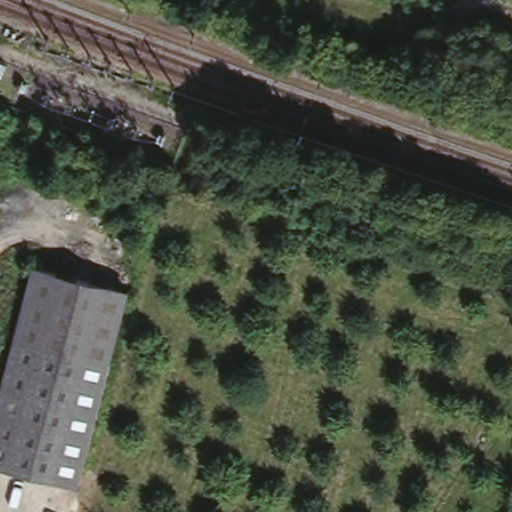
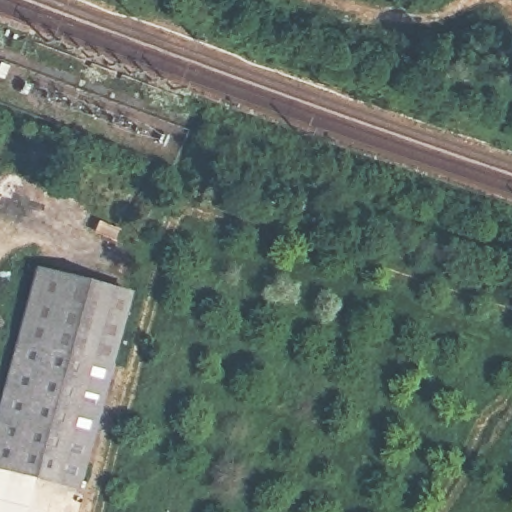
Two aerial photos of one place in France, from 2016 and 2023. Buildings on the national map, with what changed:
unchanged [(126,295),(76,487),(0,467),(0,402),(35,268),(126,295)]

